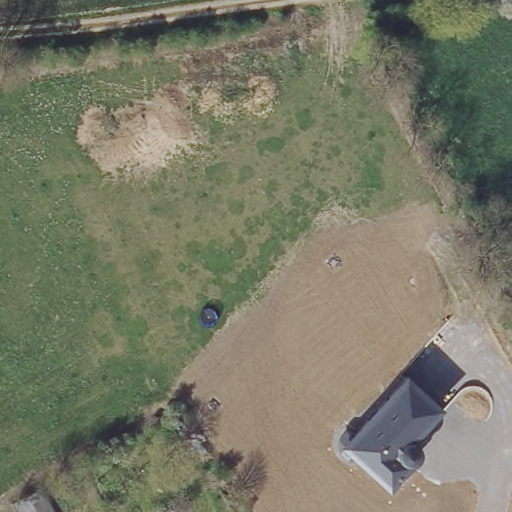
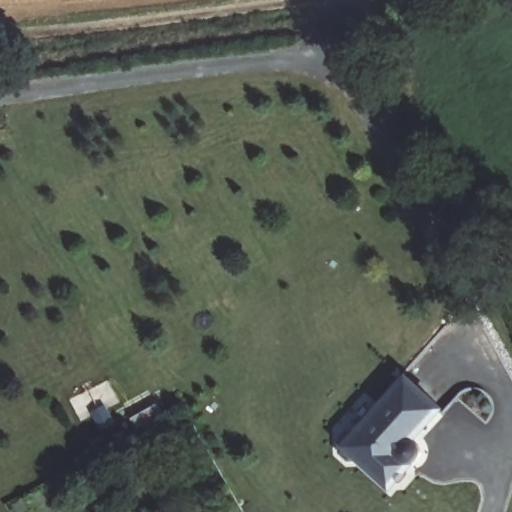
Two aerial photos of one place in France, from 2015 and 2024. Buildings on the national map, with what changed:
unchanged [(446,405),(416,439),(421,447),(422,450),(423,457),(391,489),(351,454),(347,457),(337,448),(337,431),(347,419),(356,426),(407,372),(446,405)]
unchanged [(41,493),(53,512),(16,512),(13,507),(41,493)]

